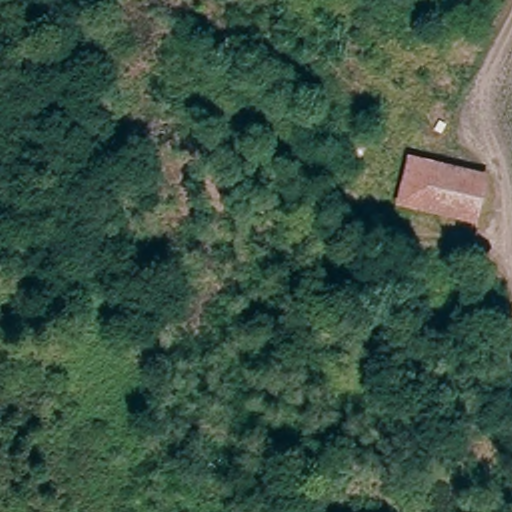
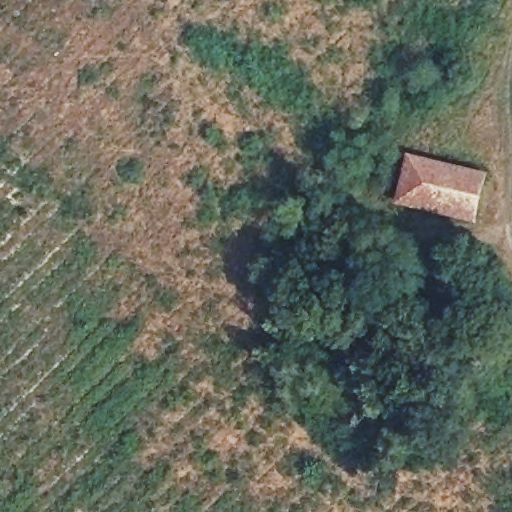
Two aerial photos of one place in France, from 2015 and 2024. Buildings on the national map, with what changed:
unchanged [(485,178),(475,223),(402,205),(411,161),(485,178)]

